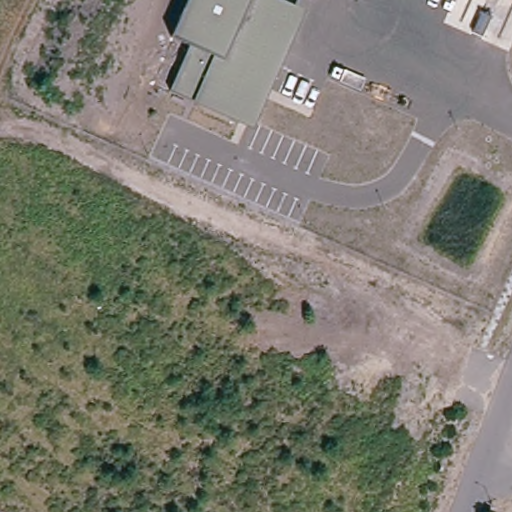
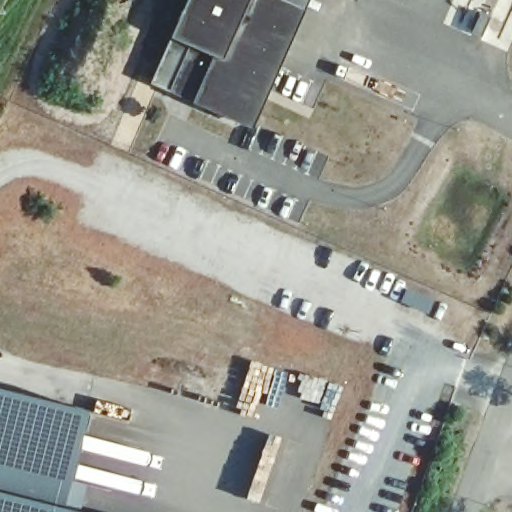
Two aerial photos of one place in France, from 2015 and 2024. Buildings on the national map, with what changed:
unchanged [(189,48),(170,40),(187,0),(251,0),(230,48),(259,60),(232,121),(194,104),(169,93),(173,84),(189,48)]
unchanged [(273,0),(298,11),(247,127),(232,121),(259,60),(230,48),(251,0),(273,0)]
new [(273,0),(311,0),(305,15),(298,11),(273,0)]
unchanged [(482,38),(471,34),(481,13),(491,18),(482,38)]
new [(90,412),(73,479),(90,485),(80,512),(0,512),(0,388),(90,412)]

